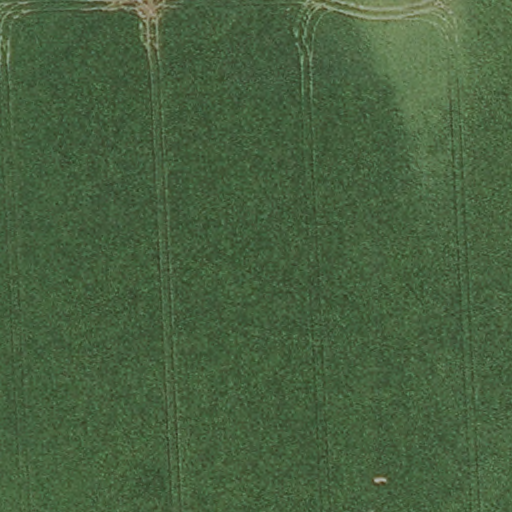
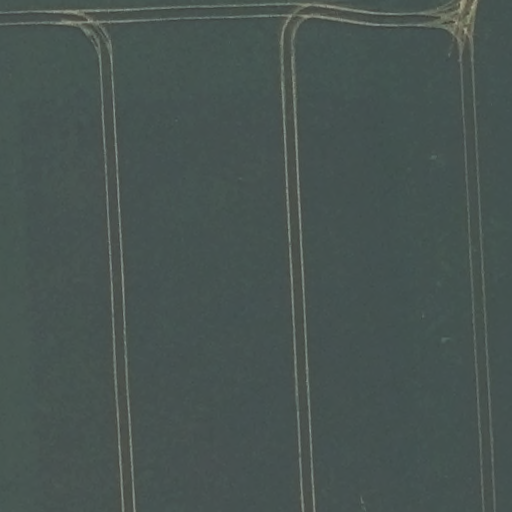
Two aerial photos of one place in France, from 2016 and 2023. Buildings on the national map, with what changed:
[]

